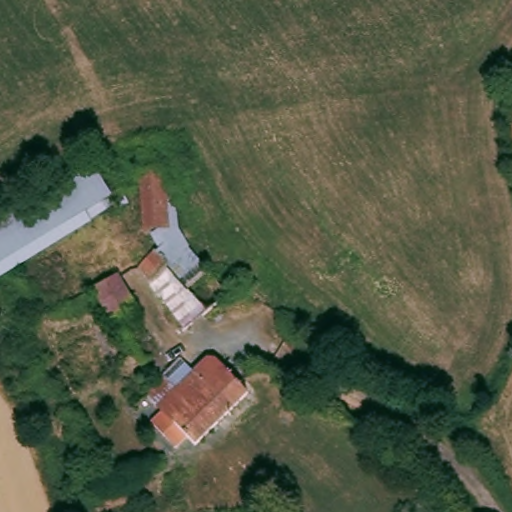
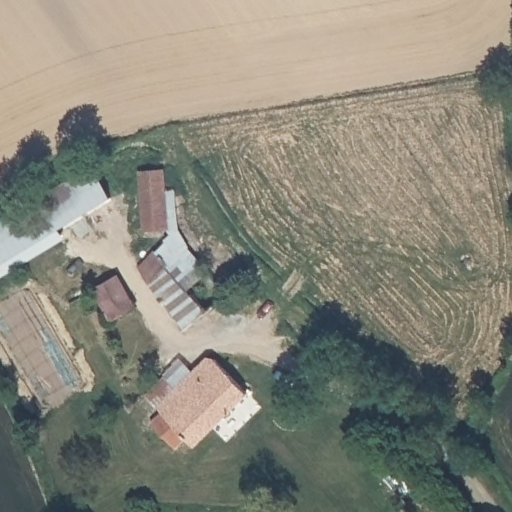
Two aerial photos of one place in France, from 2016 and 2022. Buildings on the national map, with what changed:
unchanged [(95,170),(101,166),(120,202),(0,266),(0,220),(44,197),(95,170)]
unchanged [(146,261),(157,242),(151,229),(141,170),(170,166),(170,180),(183,182),(184,230),(193,240),(156,282),(146,261)]
unchanged [(131,275),(143,303),(111,316),(96,290),(131,275)]
unchanged [(211,370),(244,418),(176,455),(166,440),(153,447),(140,428),(150,420),(136,395),(157,385),(165,395),(211,370)]

